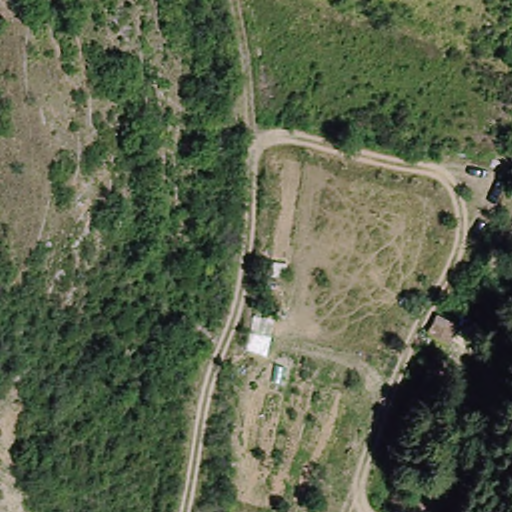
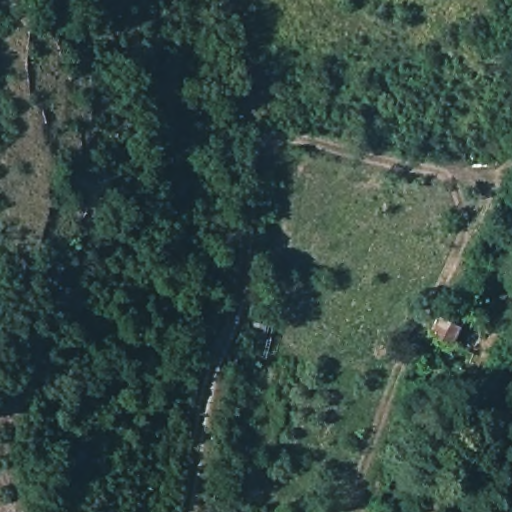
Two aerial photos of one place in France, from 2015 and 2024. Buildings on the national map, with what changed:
unchanged [(444,337),(430,331),(438,314),(449,319),(461,324),(452,341),(444,337)]

